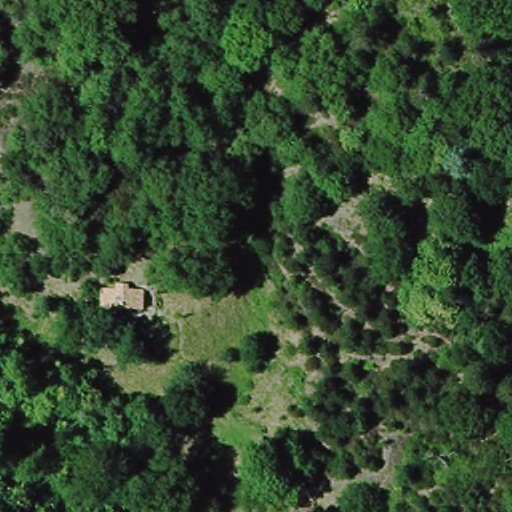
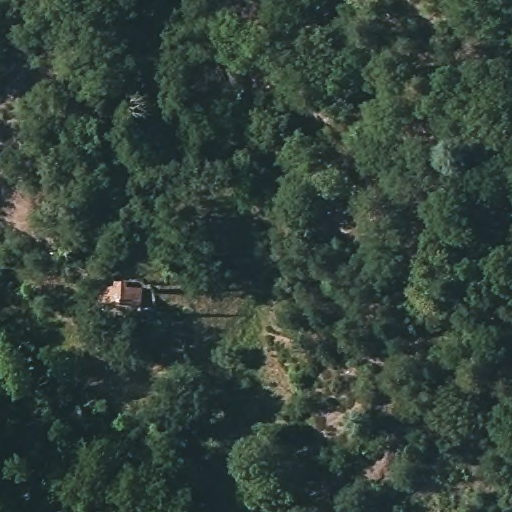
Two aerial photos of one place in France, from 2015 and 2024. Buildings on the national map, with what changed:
unchanged [(130,286),(147,290),(145,308),(126,305),(123,291),(130,286)]

